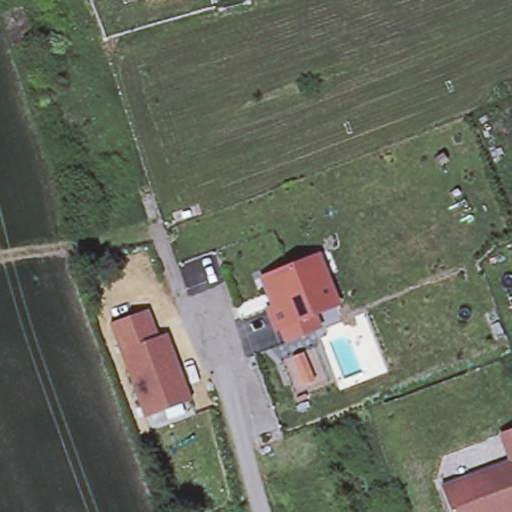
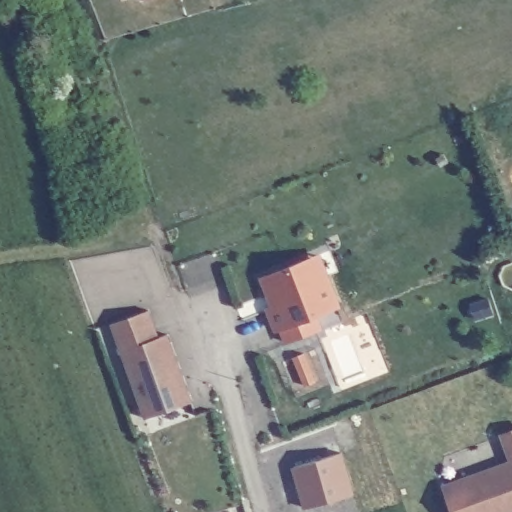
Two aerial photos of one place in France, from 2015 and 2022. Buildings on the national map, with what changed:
unchanged [(274,302),(284,297),(281,289),(275,286),(270,275),(274,268),(314,252),(321,250),(329,270),(341,299),(318,309),(324,324),(289,338),(283,323),(274,302)]
unchanged [(146,415),(111,321),(149,308),(159,335),(168,332),(192,399),(146,415)]
unchanged [(499,512),(451,512),(441,483),(511,458),(501,430),(512,426),(512,507),(499,512)]
new [(355,492),(303,509),(291,466),(343,451),(355,492)]

